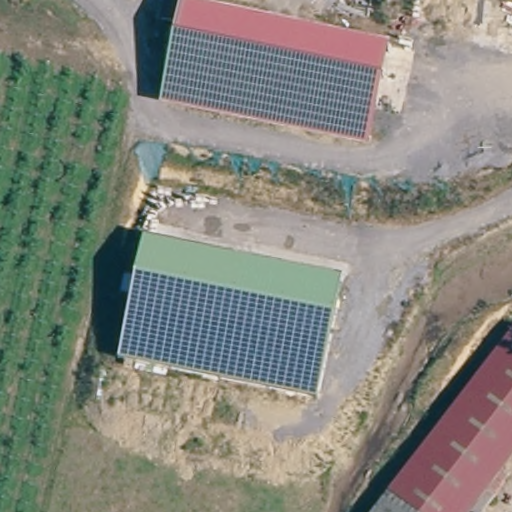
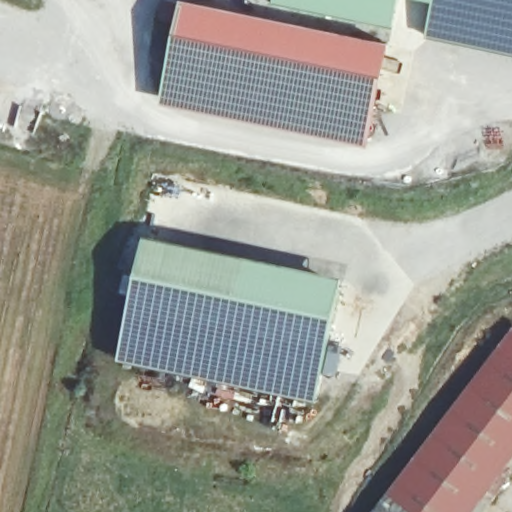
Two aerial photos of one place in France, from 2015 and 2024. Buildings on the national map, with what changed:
unchanged [(182,2),(178,24),(166,22),(170,0),(182,2)]
new [(273,3),(274,0),(400,0),(395,28),(273,3)]
new [(425,0),(437,0),(436,2),(425,0)]
new [(512,0),(512,55),(430,37),(437,0),(512,0)]
unchanged [(392,44),(371,143),(237,115),(165,100),(186,1),(392,44)]
unchanged [(319,400),(120,359),(145,236),(343,278),(319,400)]
unchanged [(501,354),(512,340),(512,362),(501,354)]
unchanged [(447,425),(501,354),(512,362),(512,448),(499,465),(512,475),(512,477),(486,512),(381,512),(447,425)]

